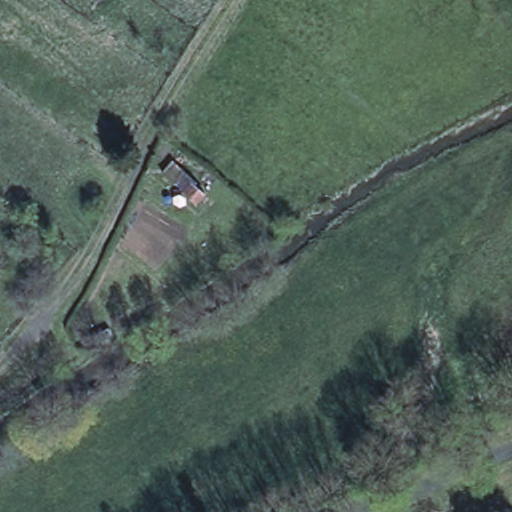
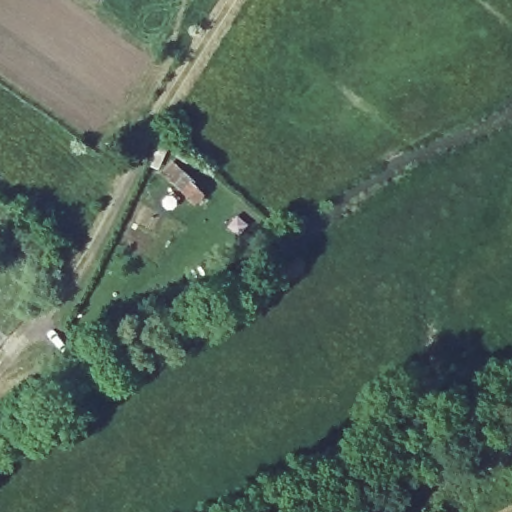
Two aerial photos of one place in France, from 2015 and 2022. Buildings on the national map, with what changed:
unchanged [(60,0),(95,0),(83,16),(60,0)]
unchanged [(197,207),(178,194),(187,180),(157,159),(169,143),(205,167),(197,184),(209,195),(197,207)]
unchanged [(145,306),(153,322),(115,341),(110,335),(93,343),(88,334),(145,306)]

